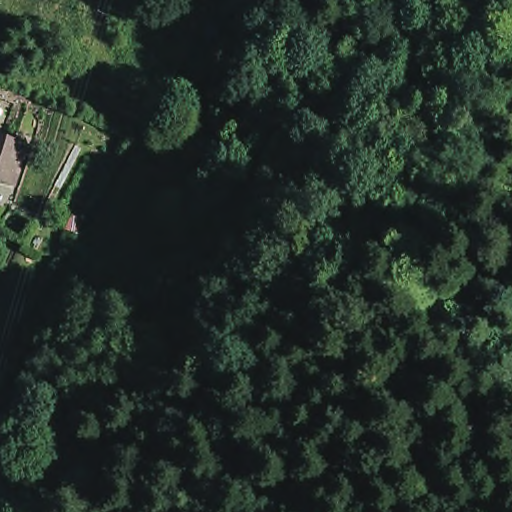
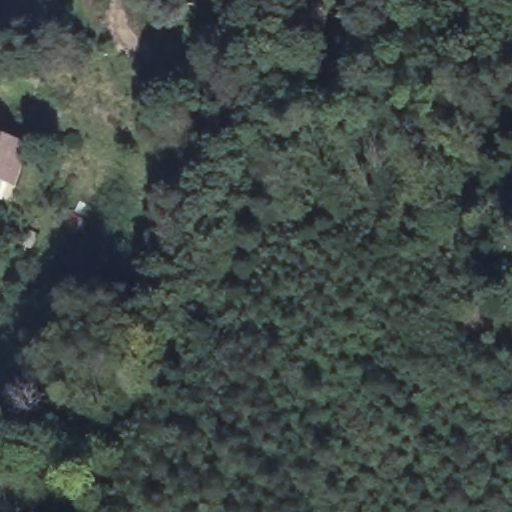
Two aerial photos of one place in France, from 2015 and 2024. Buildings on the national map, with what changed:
unchanged [(18,145),(7,182),(0,180),(0,134),(7,136),(6,140),(18,145)]

